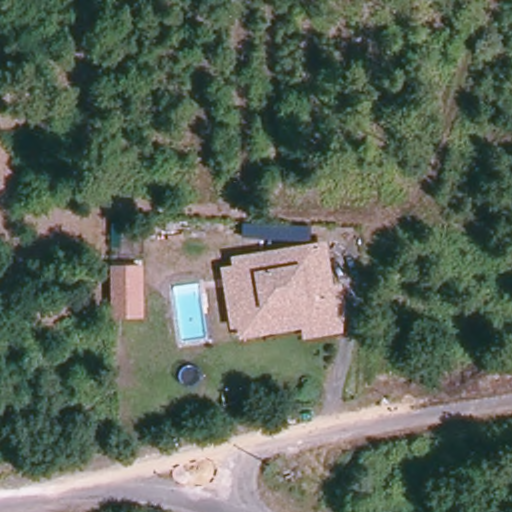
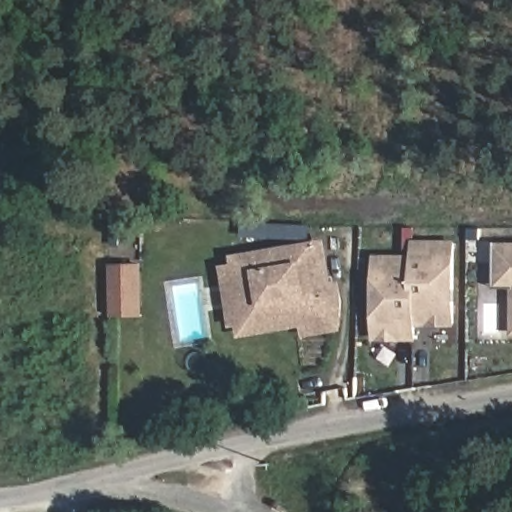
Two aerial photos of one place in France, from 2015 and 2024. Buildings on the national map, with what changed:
unchanged [(327,240),(333,283),(342,282),(344,301),(342,332),(302,338),(301,329),(237,339),(236,328),(229,329),(221,268),(235,266),(234,256),(327,240)]
new [(418,326),(417,340),(375,340),(375,255),(413,254),(412,240),(457,240),(457,326),(418,326)]
new [(512,287),(495,287),(496,242),(512,242),(512,335),(512,287)]
unchanged [(145,318),(114,318),(112,265),(144,265),(145,318)]

